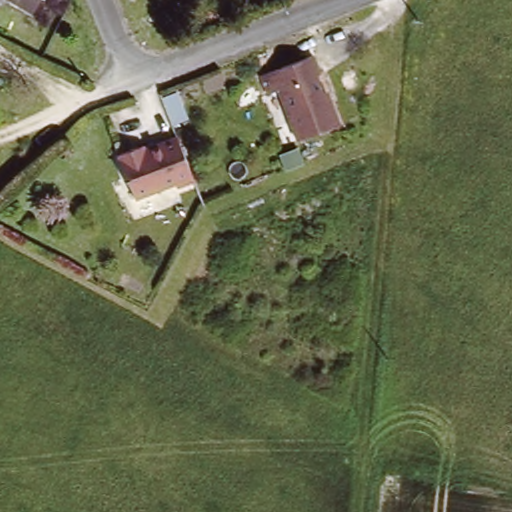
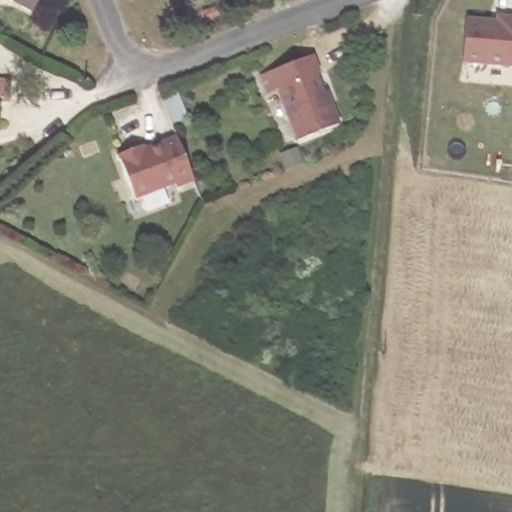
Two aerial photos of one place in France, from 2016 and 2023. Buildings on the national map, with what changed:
unchanged [(26,0),(38,0),(35,5),(26,0)]
new [(467,16),(497,19),(497,16),(512,17),(512,68),(463,64),(467,16)]
unchanged [(315,51),(343,124),(303,140),(282,86),(270,91),(263,72),(315,51)]
unchanged [(174,137),(192,180),(173,187),(171,182),(133,197),(115,154),(134,146),(136,152),(174,137)]
unchanged [(301,152),(307,166),(290,172),(284,158),(301,152)]

